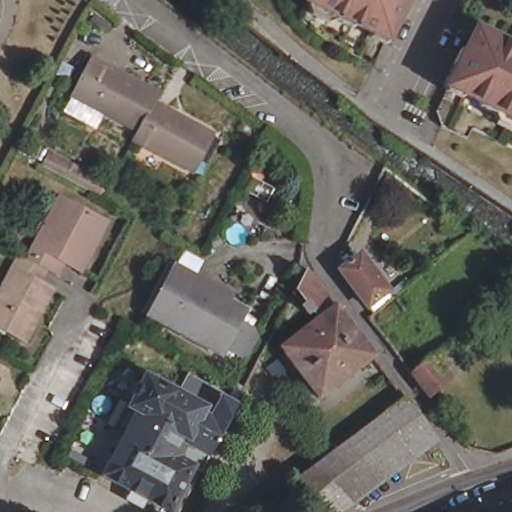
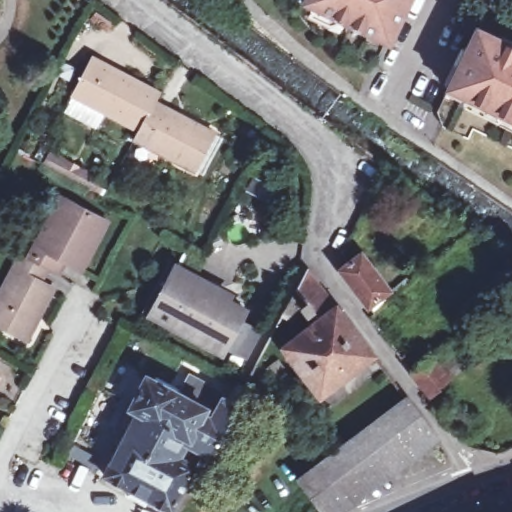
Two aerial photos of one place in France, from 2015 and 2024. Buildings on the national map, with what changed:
unchanged [(404,23),(388,56),(342,33),(337,30),(331,27),(326,22),(320,16),(314,8),(308,1),(308,0),(415,0),(404,23)]
unchanged [(470,121),(465,132),(438,119),(443,109),(433,104),(448,72),(472,21),(512,40),(512,142),(470,121)]
unchanged [(78,99),(97,61),(165,96),(160,104),(144,135),(78,99)]
unchanged [(160,104),(217,136),(198,174),(140,143),(144,135),(160,104)]
unchanged [(395,208),(380,201),(392,175),(407,183),(395,208)]
unchanged [(84,265),(72,259),(65,273),(54,268),(35,258),(70,195),(116,220),(107,237),(90,268),(84,265)]
unchanged [(58,289),(32,338),(0,321),(0,302),(25,253),(35,258),(54,268),(46,283),(58,289)]
unchanged [(345,269),(365,254),(392,290),(397,297),(378,314),(372,306),(345,269)]
unchanged [(150,312),(177,262),(220,286),(216,291),(181,272),(172,289),(165,302),(190,317),(183,331),(150,312)]
unchanged [(306,287),(319,269),(356,319),(382,355),(325,397),(289,346),(325,320),(309,299),(303,291),(306,287)]
unchanged [(260,353),(255,362),(233,350),(230,357),(183,331),(190,317),(165,302),(172,289),(181,272),(216,291),(254,312),(247,324),(270,336),(260,353)]
unchanged [(292,330),(255,401),(247,397),(275,341),(282,328),(295,304),(303,291),(309,299),(292,330)]
unchanged [(431,395),(415,372),(435,355),(452,377),(431,395)]
unchanged [(161,383),(163,380),(185,393),(184,395),(212,410),(210,415),(217,419),(229,399),(242,405),(185,512),(176,512),(112,477),(145,412),(137,408),(153,378),(161,383)]
unchanged [(439,438),(336,512),(326,512),(306,486),(415,405),(439,438)]

